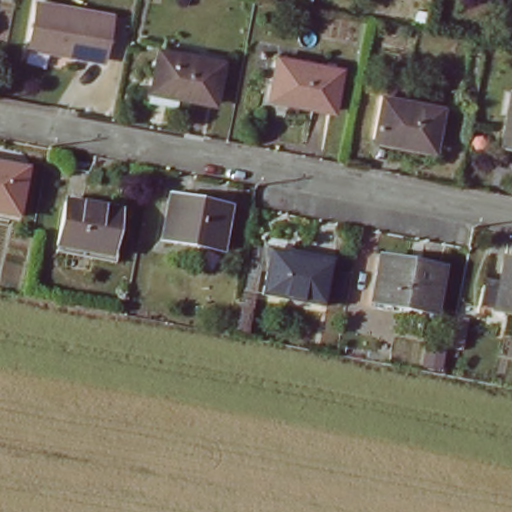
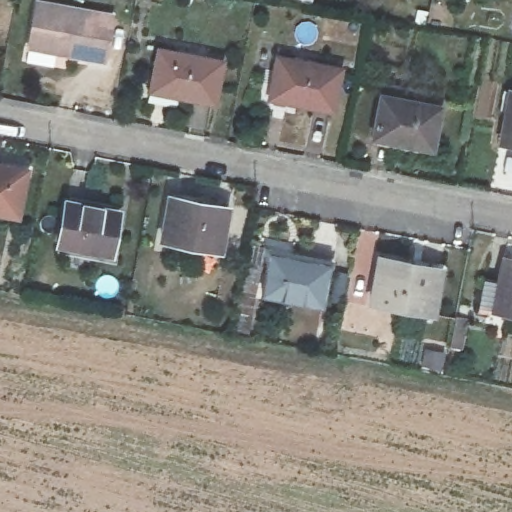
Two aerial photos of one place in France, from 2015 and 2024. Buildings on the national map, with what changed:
unchanged [(119,16),(111,60),(37,47),(44,3),(119,16)]
unchanged [(222,65),(214,107),(179,100),(180,96),(151,90),(158,52),(222,65)]
unchanged [(333,113),(297,107),(298,102),(269,97),(276,59),(340,71),(333,113)]
unchanged [(499,145),(509,92),(512,92),(512,147),(499,145)]
unchanged [(433,153),(374,141),(383,98),(442,110),(433,153)]
unchanged [(0,217),(0,164),(24,169),(16,220),(0,217)]
unchanged [(220,251),(162,241),(170,197),(228,207),(220,251)]
unchanged [(112,260),(58,250),(65,207),(120,217),(112,260)]
unchanged [(322,306),(263,295),(271,252),(330,263),(322,306)]
unchanged [(490,277),(506,281),(510,258),(512,259),(512,315),(500,312),(484,310),(490,277)]
unchanged [(434,318),(373,307),(381,262),(443,273),(434,318)]

